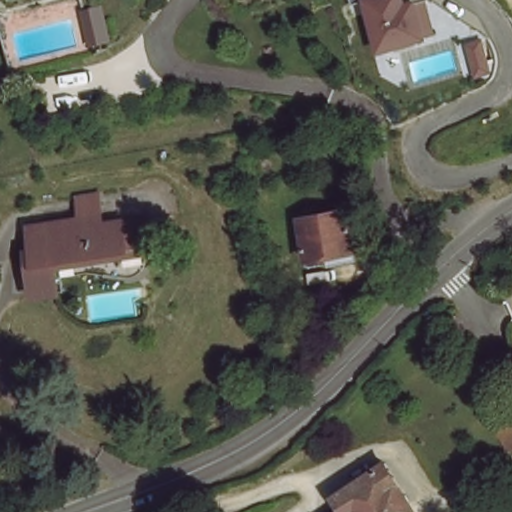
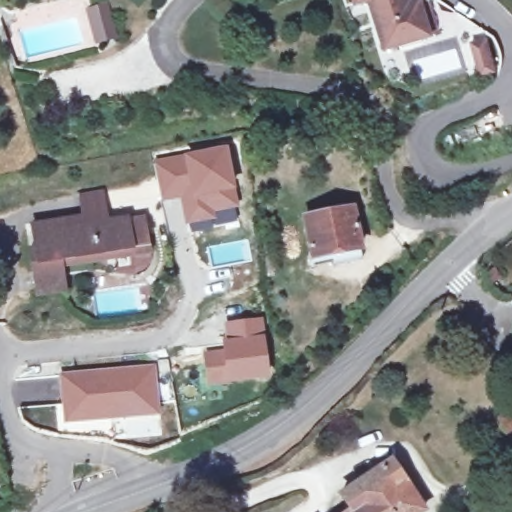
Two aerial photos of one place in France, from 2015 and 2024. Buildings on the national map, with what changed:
unchanged [(397,5),(412,0),(423,35),(379,49),(363,0),(395,0),(397,5)]
unchanged [(89,9),(93,8),(105,5),(114,39),(102,42),(97,43),(89,9)]
unchanged [(482,76),(479,65),(473,44),(487,40),(493,61),(496,72),(482,76)]
new [(155,163),(223,150),(238,221),(170,237),(155,163)]
new [(82,214),(79,193),(103,188),(109,217),(67,223),(65,215),(82,214)]
unchanged [(362,250),(312,260),(304,217),(353,208),(362,250)]
unchanged [(64,286),(38,290),(33,257),(38,256),(32,220),(65,215),(67,223),(128,214),(130,226),(146,224),(150,247),(134,250),(61,261),(64,286)]
unchanged [(464,317),(473,331),(461,340),(452,326),(464,317)]
new [(205,356),(225,353),(222,325),(251,319),(264,374),(209,383),(205,356)]
new [(60,373),(154,364),(160,415),(64,424),(60,373)]
unchanged [(497,419),(512,408),(512,441),(497,419)]
unchanged [(392,465),(421,512),(350,512),(341,499),(392,465)]

